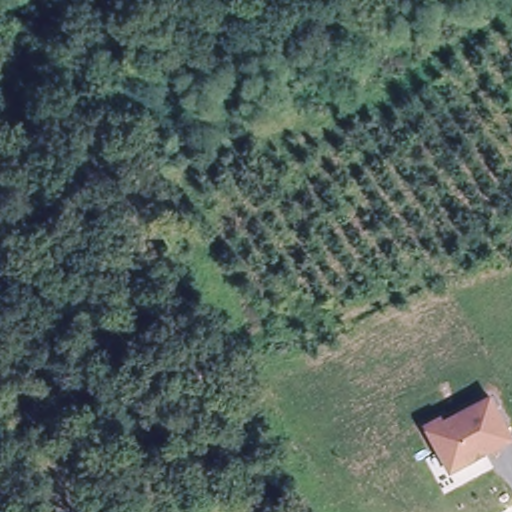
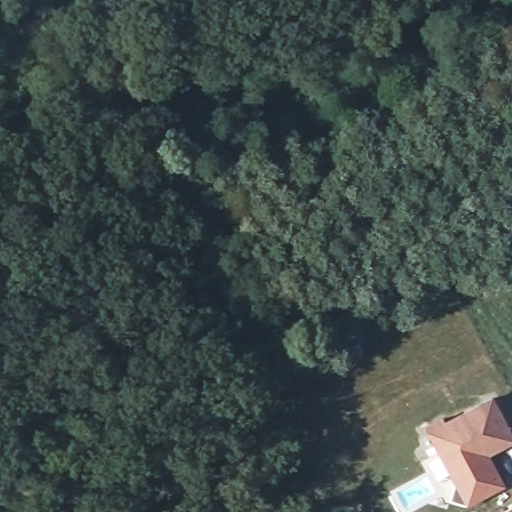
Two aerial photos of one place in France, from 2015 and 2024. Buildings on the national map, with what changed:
unchanged [(427,425),(443,416),(445,421),(493,396),(512,432),(512,440),(498,447),(452,471),(427,425)]
new [(507,486),(469,507),(449,501),(454,484),(449,473),(452,471),(489,452),(507,486)]

